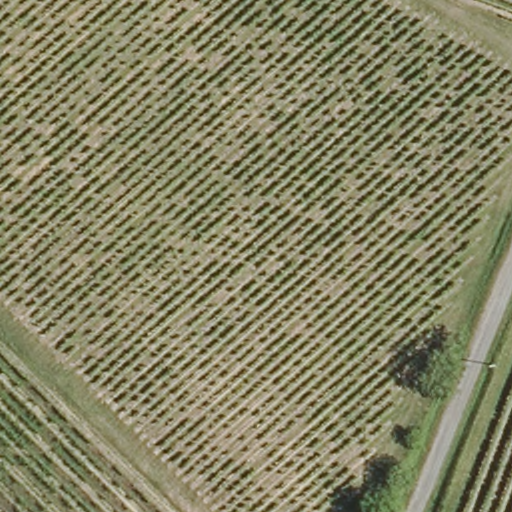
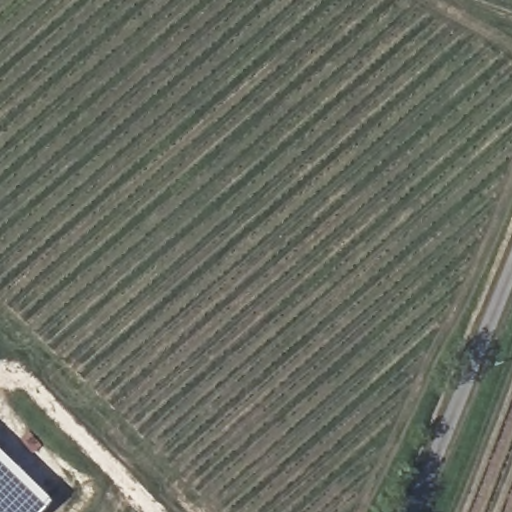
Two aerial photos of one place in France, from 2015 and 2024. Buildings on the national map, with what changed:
new [(47,501),(37,512),(0,512),(0,457),(47,501)]

